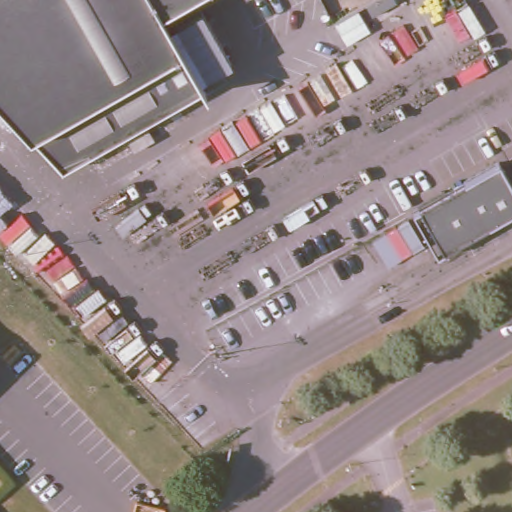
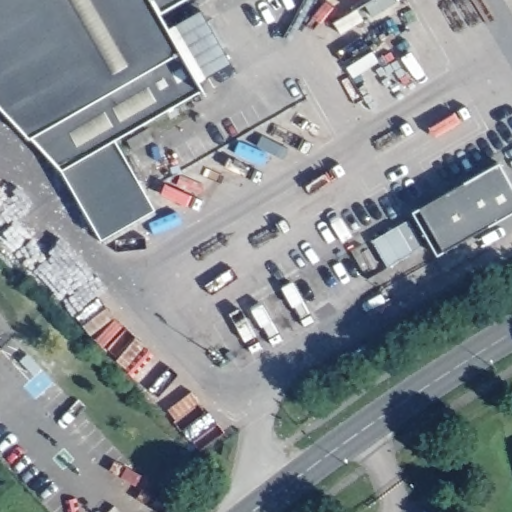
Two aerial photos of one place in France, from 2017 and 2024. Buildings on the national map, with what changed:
unchanged [(168,26),(202,12),(232,62),(195,82),(201,91),(61,170),(30,135),(0,104),(0,0),(155,0),(161,10),(168,26)]
unchanged [(155,0),(178,0),(161,10),(155,0)]
new [(155,209),(101,239),(61,170),(114,140),(155,209)]
unchanged [(512,189),(512,213),(435,257),(410,211),(497,163),(512,189)]
new [(372,241),(408,220),(423,247),(387,267),(372,241)]

